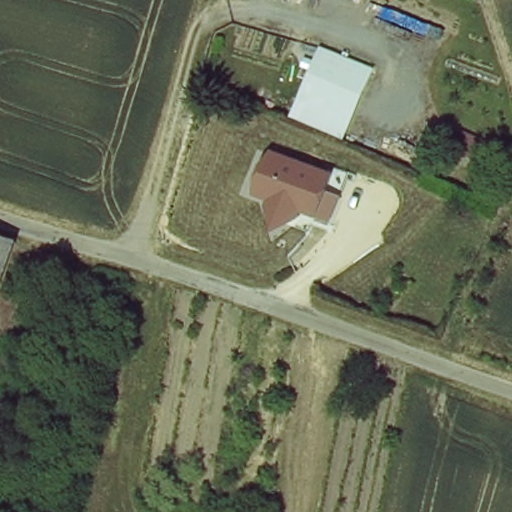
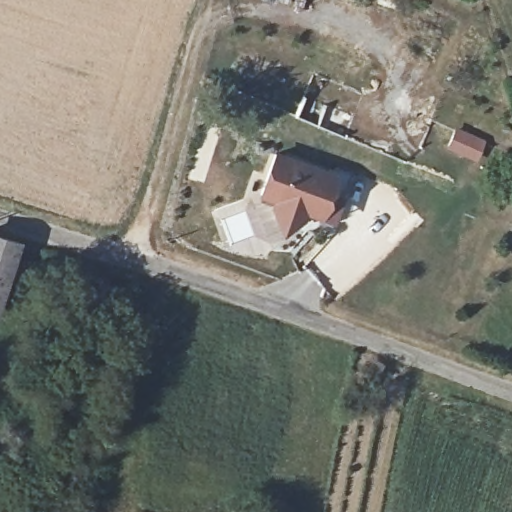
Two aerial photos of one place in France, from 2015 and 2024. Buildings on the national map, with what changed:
demolished [(345,137),(287,115),(316,37),(375,66),(345,137)]
unchanged [(477,152),(448,141),(455,125),(483,136),(477,152)]
unchanged [(335,174),(322,215),(262,193),(278,152),(335,174)]
unchanged [(0,296),(0,234),(17,240),(0,296)]

